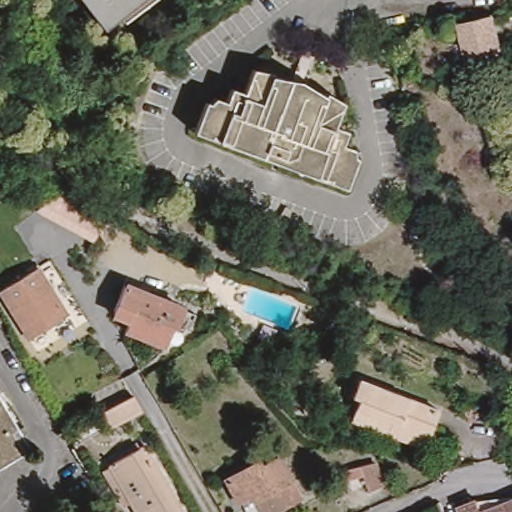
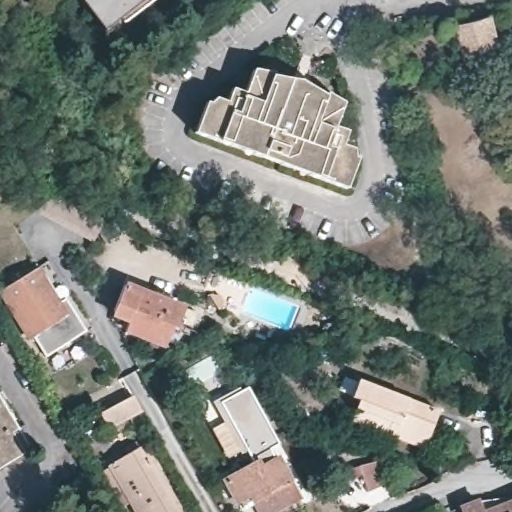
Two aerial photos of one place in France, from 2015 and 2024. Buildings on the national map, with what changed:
unchanged [(88,0),(141,0),(107,26),(88,0)]
unchanged [(464,22),(497,15),(508,59),(494,61),(475,65),(464,22)]
unchanged [(341,123),(352,128),(345,147),(363,154),(352,184),(201,130),(211,100),(228,105),(236,86),(249,90),(258,69),(269,69),(266,77),(274,80),(276,75),(286,75),(284,83),(292,86),(295,81),(302,83),(303,84),(313,87),(311,92),(318,95),(322,87),(331,94),(329,99),(336,101),(339,94),(348,100),(341,123)]
unchanged [(55,134),(48,145),(35,136),(42,126),(55,134)]
unchanged [(102,207),(120,219),(96,232),(85,217),(77,212),(78,210),(77,210),(85,197),(102,207)]
unchanged [(118,236),(105,245),(98,232),(112,225),(118,236)]
unchanged [(20,315),(10,300),(0,282),(0,273),(32,254),(60,301),(67,312),(25,337),(14,320),(20,315)]
unchanged [(132,315),(120,310),(122,305),(119,303),(129,280),(200,308),(193,324),(189,322),(193,311),(188,309),(185,316),(182,315),(172,340),(132,325),(132,315)]
unchanged [(334,323),(335,331),(324,333),(323,325),(334,323)]
unchanged [(388,426),(355,413),(361,395),(354,392),(361,375),(425,400),(426,400),(439,405),(430,429),(425,440),(388,426)]
new [(239,387),(240,390),(247,387),(278,444),(270,448),(274,458),(259,466),(256,461),(254,462),(247,451),(240,455),(239,453),(228,459),(211,429),(223,422),(212,402),(239,387)]
unchanged [(36,450),(0,471),(0,390),(36,450)]
unchanged [(132,395),(141,409),(109,428),(99,412),(132,395)]
unchanged [(183,512),(136,512),(107,463),(124,452),(142,442),(183,512)]
unchanged [(273,512),(259,512),(248,494),(235,501),(223,479),(256,461),(259,466),(277,456),(293,487),(299,498),(273,512)]
unchanged [(383,485),(368,491),(364,480),(351,485),(345,471),(359,466),(374,461),(383,485)]
unchanged [(510,500),(512,508),(512,512),(466,512),(465,506),(465,500),(502,492),(508,491),(510,500)]

